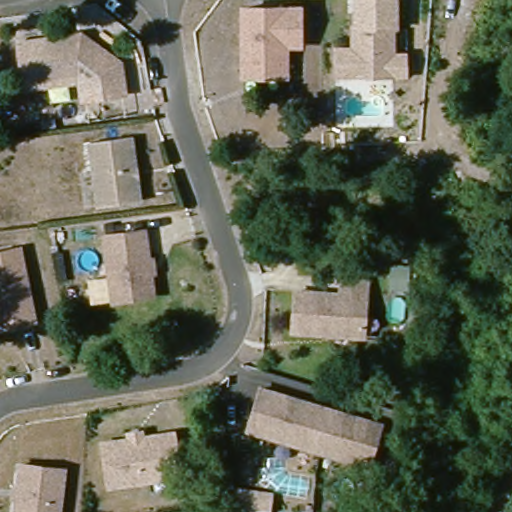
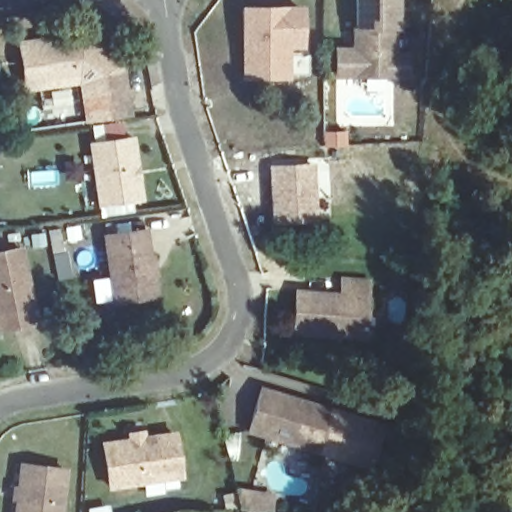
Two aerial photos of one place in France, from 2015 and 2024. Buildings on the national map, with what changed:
unchanged [(391,75),(334,76),(334,50),(352,49),(352,42),(357,42),(357,28),(354,28),(354,0),(393,0),(393,27),(390,27),(391,75)]
unchanged [(244,46),(243,9),(300,8),(301,45),(286,45),(287,76),(250,77),(245,77),(244,46)]
unchanged [(123,89),(86,94),(84,77),(79,73),(28,80),(23,37),(73,31),(73,36),(79,36),(83,30),(119,58),(123,89)]
unchanged [(136,200),(95,206),(85,143),(126,136),(136,200)]
new [(319,162),(318,220),(271,222),(271,164),(319,162)]
unchanged [(149,285),(150,294),(141,295),(110,299),(101,235),(142,229),(149,285)]
unchanged [(30,317),(0,324),(0,249),(15,246),(30,317)]
unchanged [(402,291),(384,290),(385,265),(404,266),(402,291)]
unchanged [(292,330),(294,290),(339,292),(340,277),(365,278),(364,294),(362,334),(292,330)]
unchanged [(381,422),(368,464),(248,429),(260,387),(381,422)]
unchanged [(108,482),(103,439),(129,436),(128,430),(141,428),(141,434),(173,430),(179,472),(108,482)]
unchanged [(14,512),(19,464),(62,468),(58,512),(14,512)]
unchanged [(234,483),(250,484),(250,491),(273,493),(272,505),(239,503),(234,483)]

